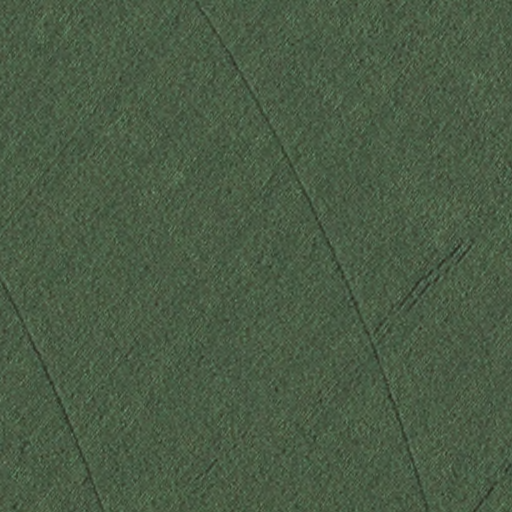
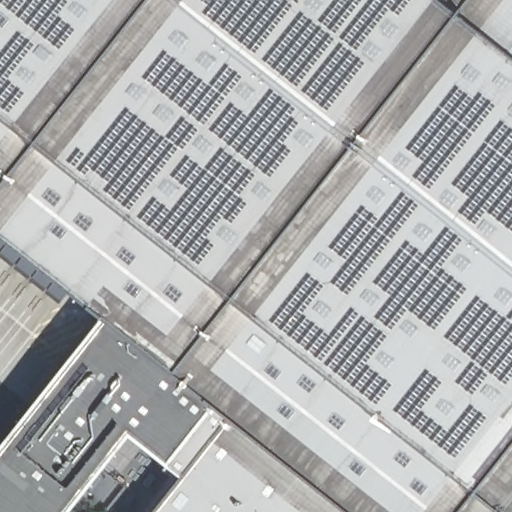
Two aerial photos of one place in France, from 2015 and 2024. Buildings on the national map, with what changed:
new [(216,401),(170,459),(134,429),(68,512),(0,512),(0,450),(106,315),(0,231),(0,0),(512,0),(512,512),(155,512),(234,414),(216,401)]

